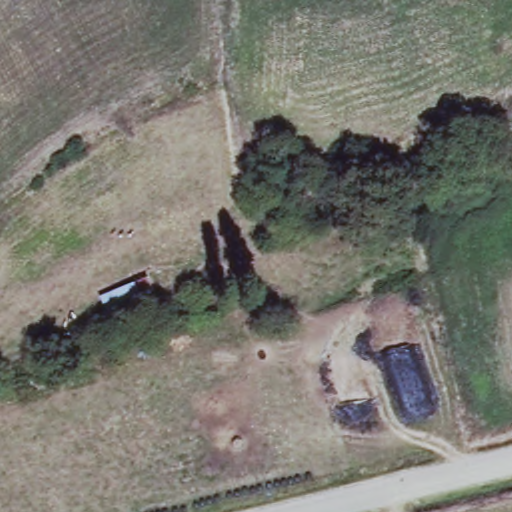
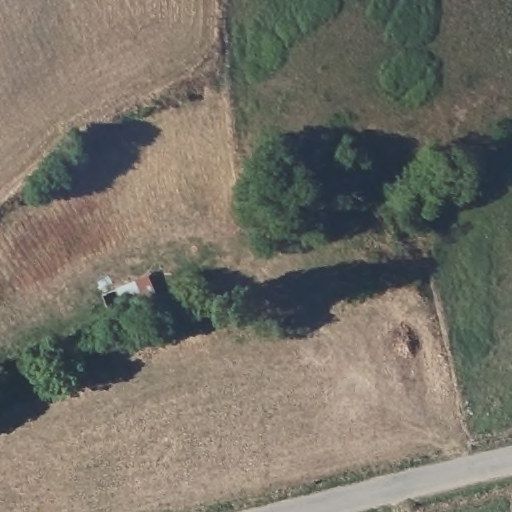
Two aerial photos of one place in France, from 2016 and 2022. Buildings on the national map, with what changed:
unchanged [(160,295),(122,312),(112,290),(157,273),(160,295)]

